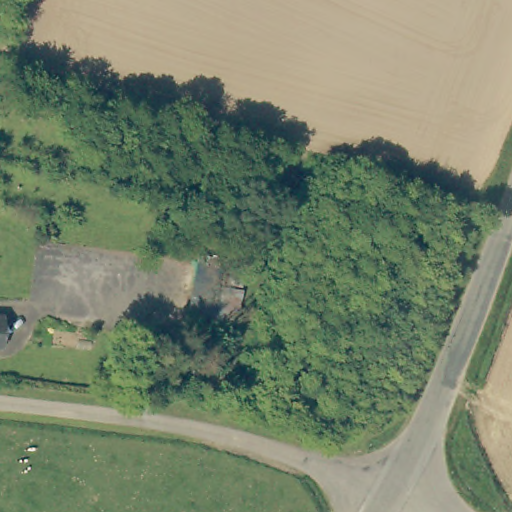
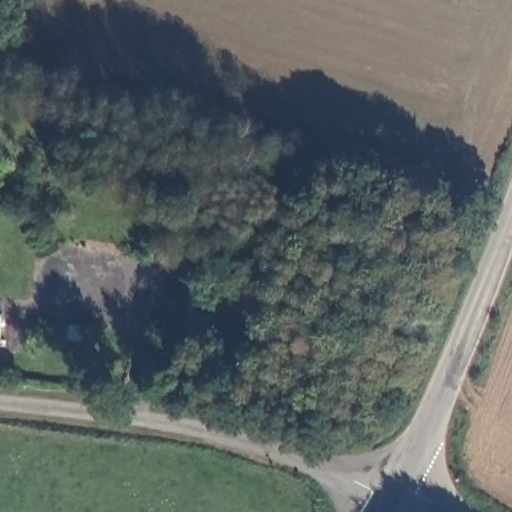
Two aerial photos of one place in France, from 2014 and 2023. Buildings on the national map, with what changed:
unchanged [(1,316),(0,347),(0,315),(1,316)]

